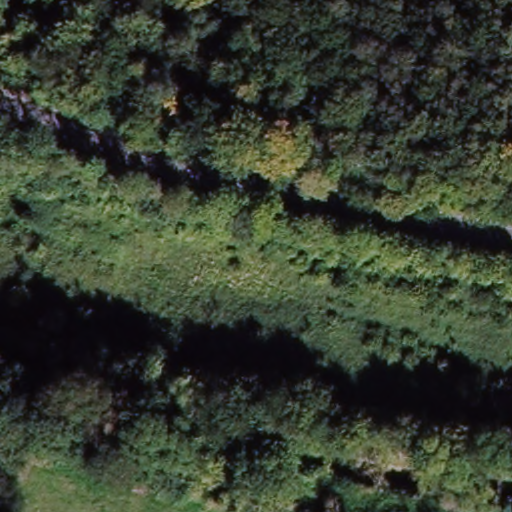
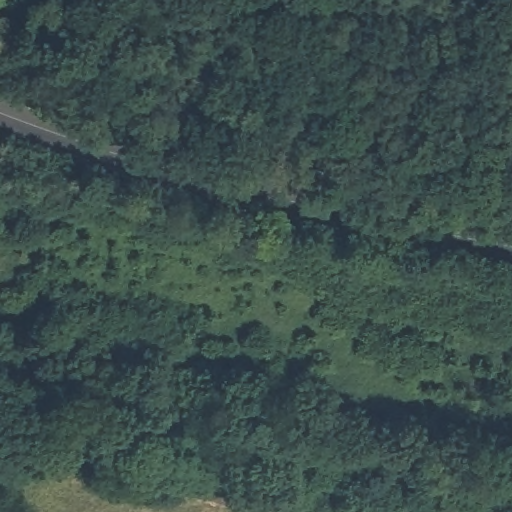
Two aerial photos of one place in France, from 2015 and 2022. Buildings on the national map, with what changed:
[]

